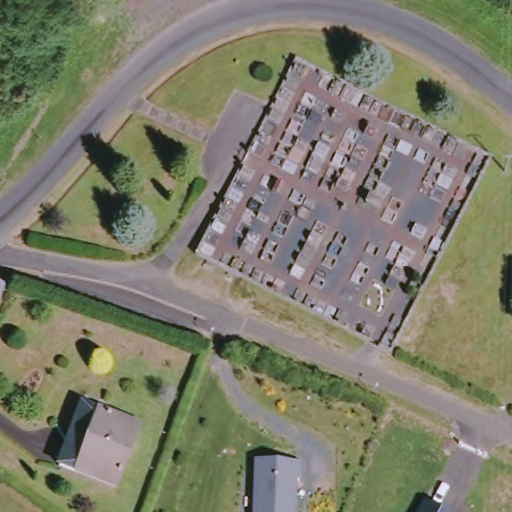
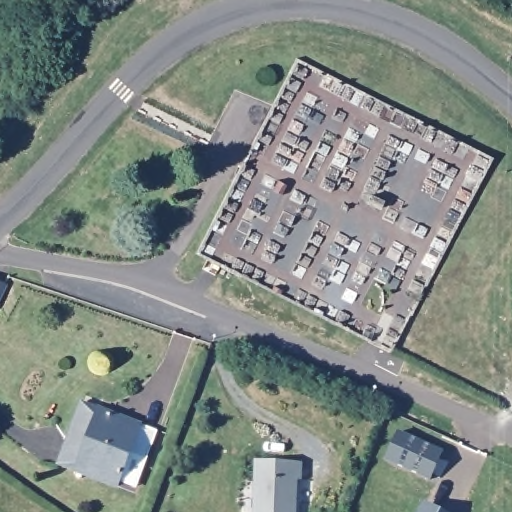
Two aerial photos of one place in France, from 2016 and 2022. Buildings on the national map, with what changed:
unchanged [(0,293),(0,283),(3,284),(0,293)]
unchanged [(155,430),(132,491),(75,470),(83,448),(98,409),(115,415),(155,430)]
new [(443,451),(431,480),(386,460),(398,431),(443,451)]
unchanged [(300,480),(296,480),(295,512),(255,512),(257,461),(301,462),(300,480)]
unchanged [(423,500),(448,512),(417,512),(423,500)]

